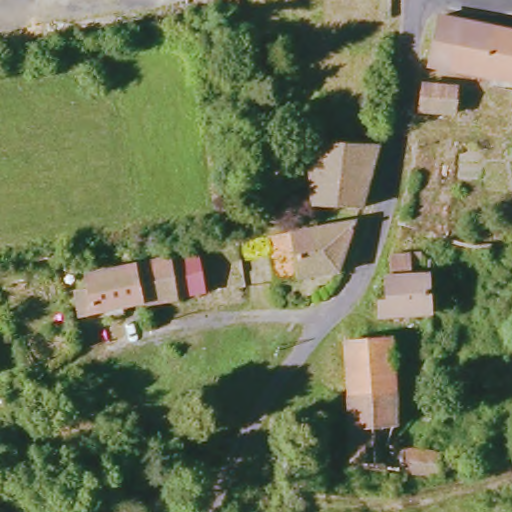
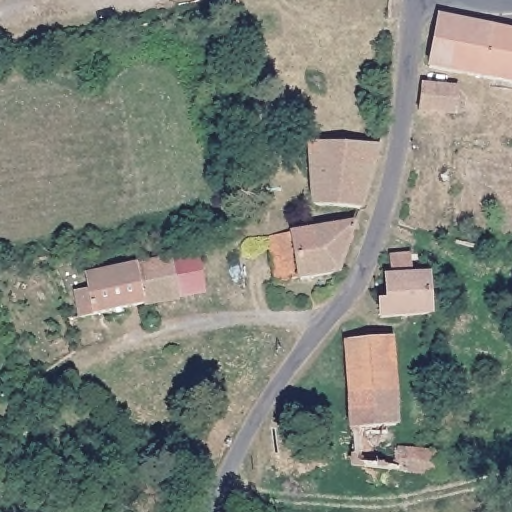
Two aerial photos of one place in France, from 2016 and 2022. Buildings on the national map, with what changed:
unchanged [(434,72),(444,24),(475,28),(512,36),(512,89),(434,72)]
unchanged [(423,86),(424,84),(456,89),(456,115),(418,111),(423,86)]
unchanged [(368,137),(366,207),(366,209),(316,205),(315,140),(368,137)]
unchanged [(361,221),(347,262),(343,271),(252,286),(246,242),(361,221)]
unchanged [(213,258),(216,292),(185,297),(181,265),(213,258)]
unchanged [(379,325),(379,303),(384,304),(384,281),(393,281),(393,260),(415,258),(416,280),(432,279),(434,320),(379,325)]
unchanged [(181,265),(185,297),(150,302),(146,270),(181,265)]
unchanged [(150,302),(85,313),(83,290),(91,290),(90,278),(146,270),(150,302)]
unchanged [(349,342),(379,341),(392,340),(397,427),(353,428),(349,342)]
unchanged [(0,373),(0,368),(1,373),(0,373)]
unchanged [(397,427),(398,448),(400,475),(384,472),(351,466),(353,428),(397,427)]
unchanged [(428,478),(400,475),(398,448),(441,453),(443,478),(429,481),(428,478)]

